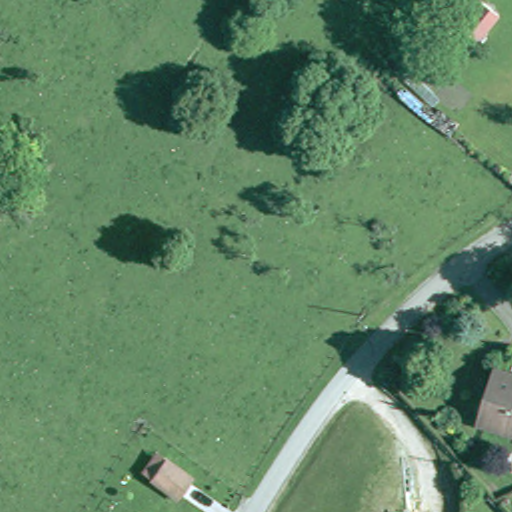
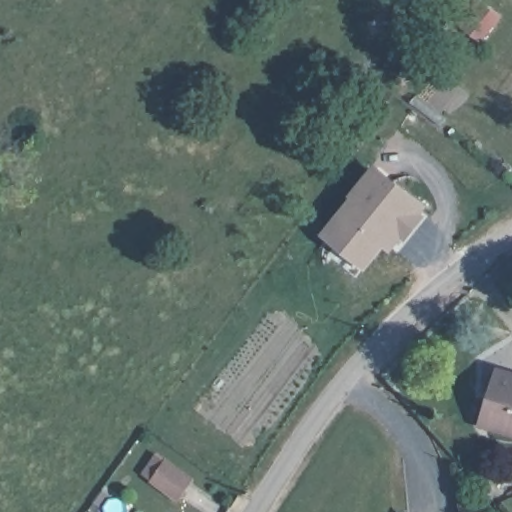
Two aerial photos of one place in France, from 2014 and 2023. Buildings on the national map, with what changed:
new [(482,2),(499,14),(480,38),(465,26),(482,2)]
new [(320,234),(349,197),(345,194),(373,162),(427,206),(422,215),(425,218),(405,242),(402,239),(390,252),(385,249),(365,272),(320,234)]
unchanged [(500,365),(512,368),(512,429),(487,421),(482,418),(493,385),(500,365)]
unchanged [(192,473),(178,495),(151,475),(165,455),(192,473)]

